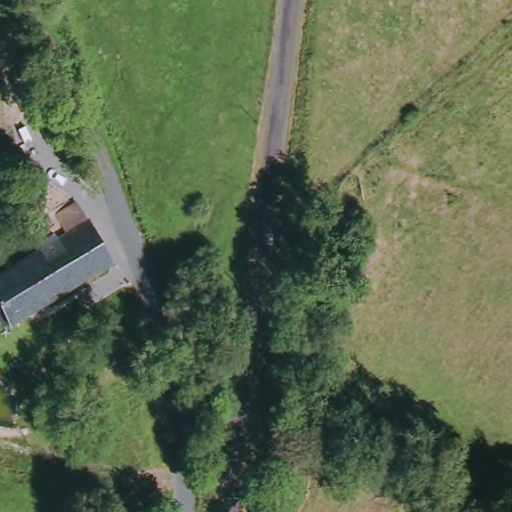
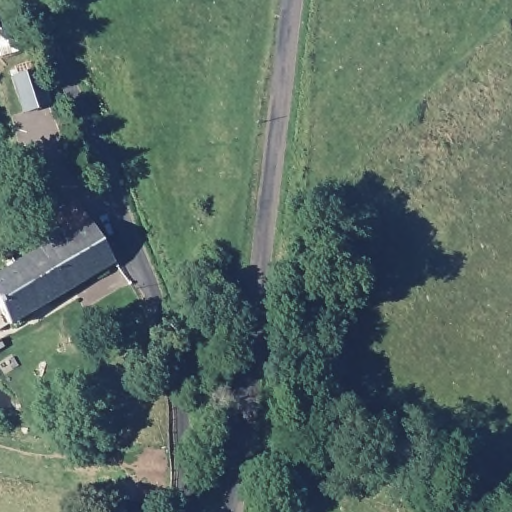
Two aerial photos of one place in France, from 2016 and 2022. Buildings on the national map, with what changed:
unchanged [(13,327),(9,321),(0,327),(0,277),(70,233),(60,217),(80,204),(116,264),(13,327)]

